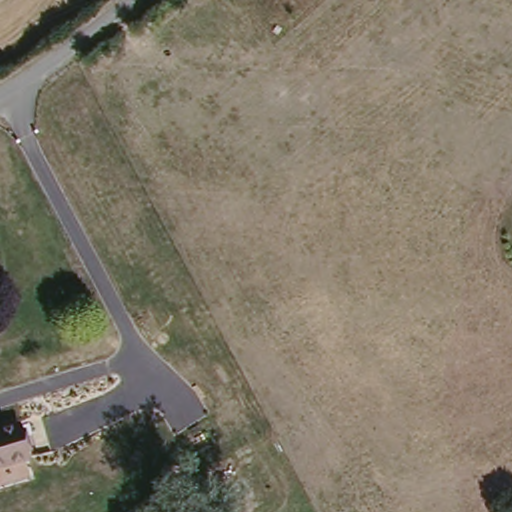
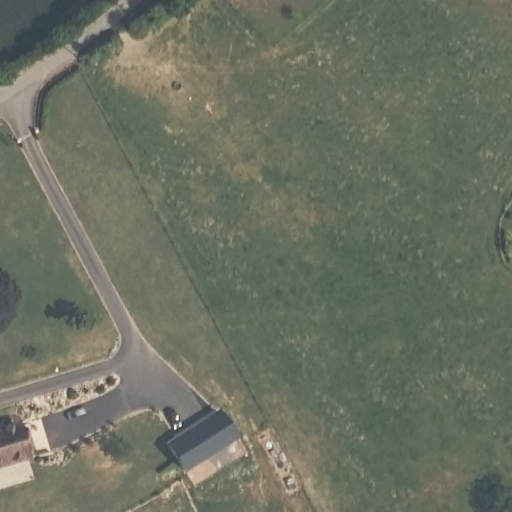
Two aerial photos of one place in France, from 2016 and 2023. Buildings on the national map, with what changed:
new [(218,411),(235,438),(181,473),(165,445),(218,411)]
unchanged [(20,419),(34,456),(0,470),(0,426),(20,419)]

